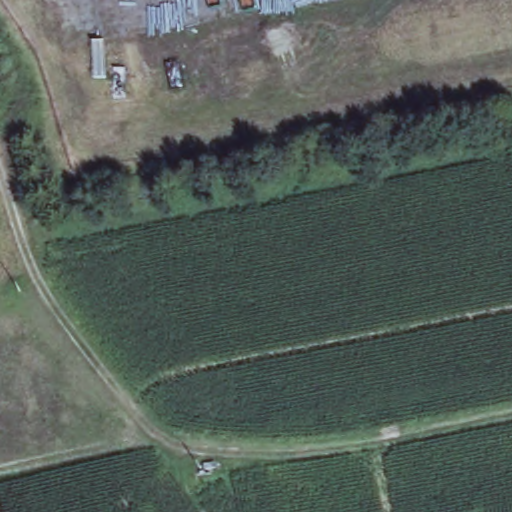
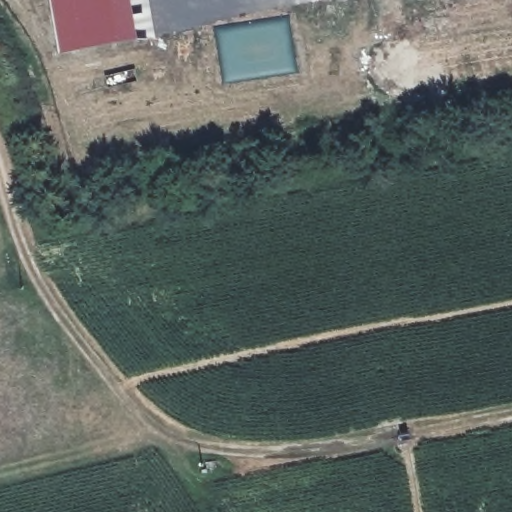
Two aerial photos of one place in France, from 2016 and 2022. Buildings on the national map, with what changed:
new [(135,41),(59,52),(51,0),(129,0),(135,41)]

